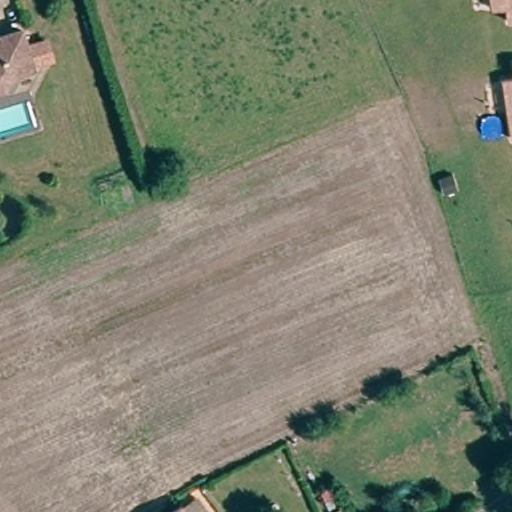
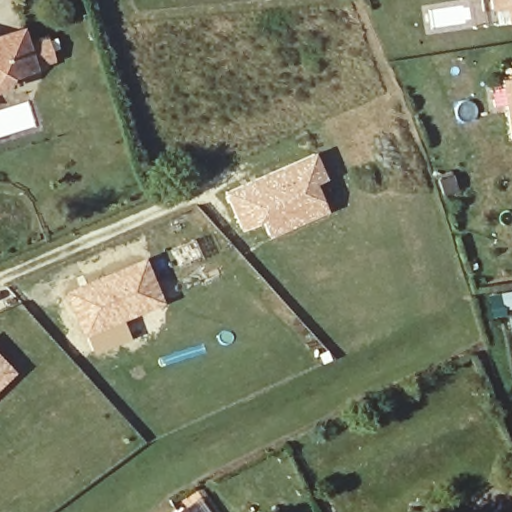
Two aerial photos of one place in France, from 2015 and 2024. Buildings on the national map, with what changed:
unchanged [(509,22),(506,7),(494,9),(492,0),(512,0),(512,22),(509,22)]
unchanged [(37,64),(20,70),(13,83),(0,87),(0,39),(27,30),(37,64)]
unchanged [(503,79),(512,78),(512,136),(503,79)]
new [(315,150),(327,178),(316,184),(328,210),(268,238),(259,222),(241,231),(222,192),(315,150)]
new [(92,354),(83,336),(63,289),(145,256),(164,303),(123,320),(130,338),(92,354)]
new [(0,388),(0,355),(17,372),(0,388)]
unchanged [(176,512),(166,512),(171,507),(176,512)]

